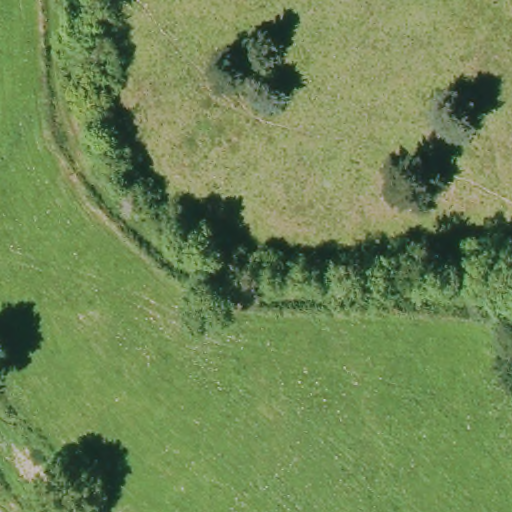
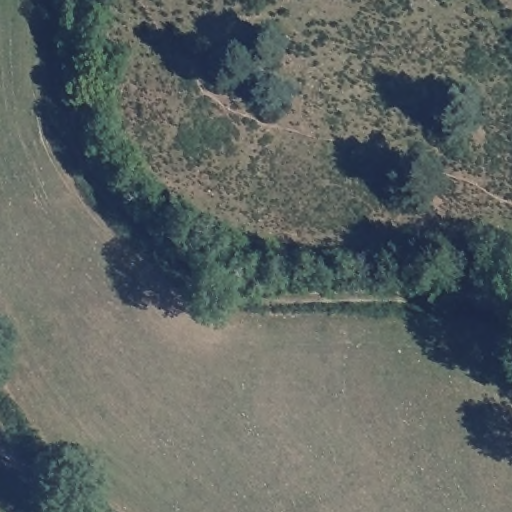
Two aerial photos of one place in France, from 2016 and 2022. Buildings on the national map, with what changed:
[]

